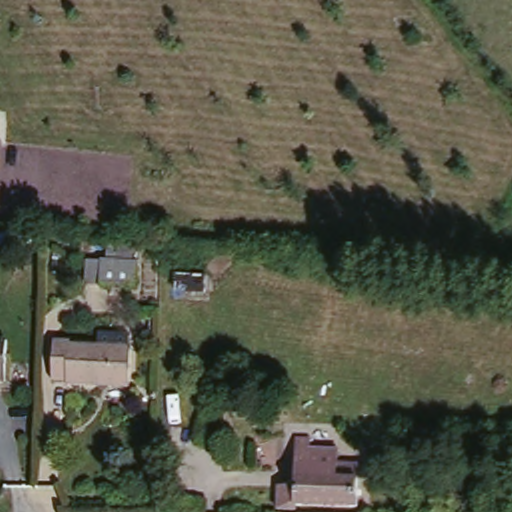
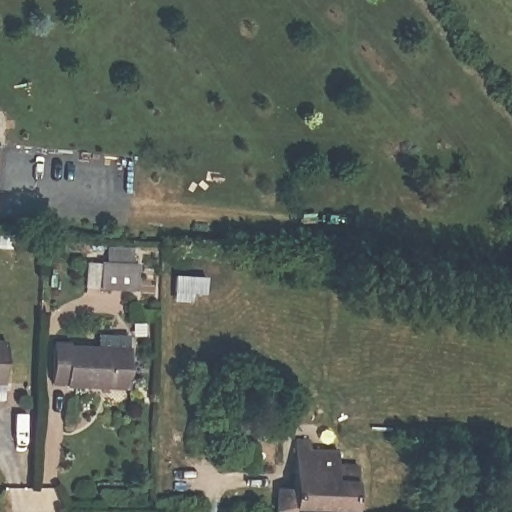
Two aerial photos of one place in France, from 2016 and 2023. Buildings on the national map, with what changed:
unchanged [(145,290),(112,286),(98,285),(100,257),(115,258),(148,262),(145,290)]
unchanged [(180,271),(210,272),(209,297),(178,292),(180,271)]
unchanged [(77,339),(77,347),(102,348),(102,336),(133,337),(132,350),(134,350),(132,389),(73,387),(74,380),(57,380),(58,338),(77,339)]
unchanged [(11,340),(13,380),(0,380),(0,340),(11,340)]
unchanged [(328,466),(326,508),(300,507),(300,512),(280,512),(280,490),(300,491),(302,440),(314,440),(315,449),(346,452),(346,467),(328,466)]
unchanged [(211,455),(211,476),(197,475),(198,455),(211,455)]
unchanged [(361,467),(362,512),(326,508),(328,466),(346,467),(361,467)]

